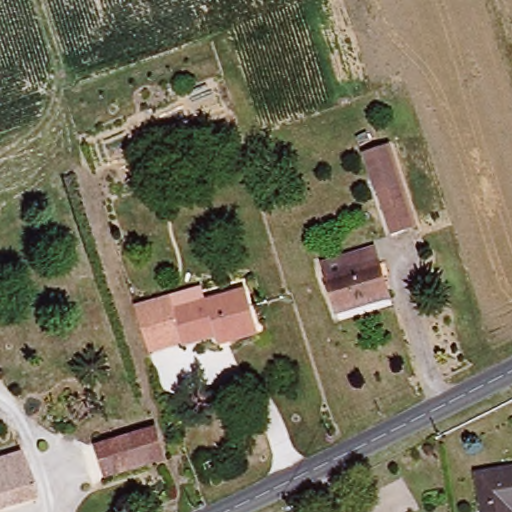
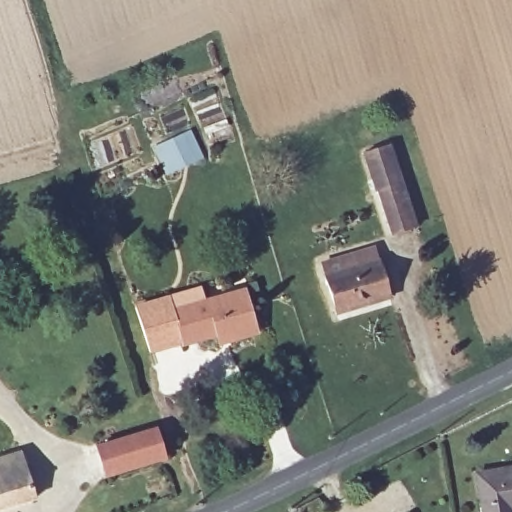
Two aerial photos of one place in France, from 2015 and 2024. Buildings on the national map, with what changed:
new [(203,159),(165,175),(153,148),(191,131),(203,159)]
unchanged [(395,234),(366,155),(386,146),(417,225),(395,234)]
unchanged [(335,314),(324,277),(319,261),(372,246),(376,262),(387,299),(335,314)]
unchanged [(148,352),(133,307),(168,297),(201,288),(204,301),(243,291),(254,325),(257,336),(215,347),(212,336),(148,352)]
unchanged [(155,429),(164,459),(110,475),(101,446),(155,429)]
unchanged [(21,452),(35,497),(0,507),(0,458),(21,452)]
unchanged [(478,472),(512,466),(512,512),(485,512),(478,472)]

